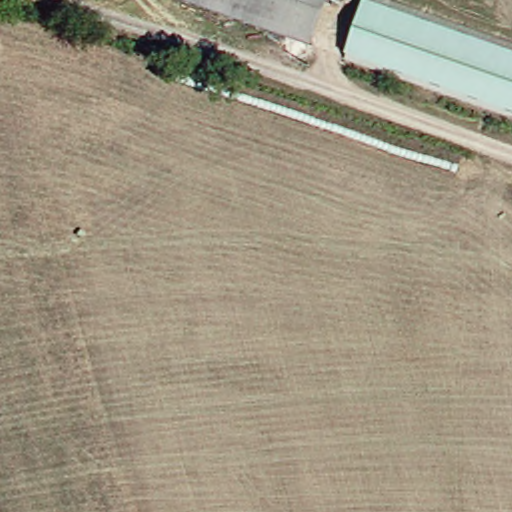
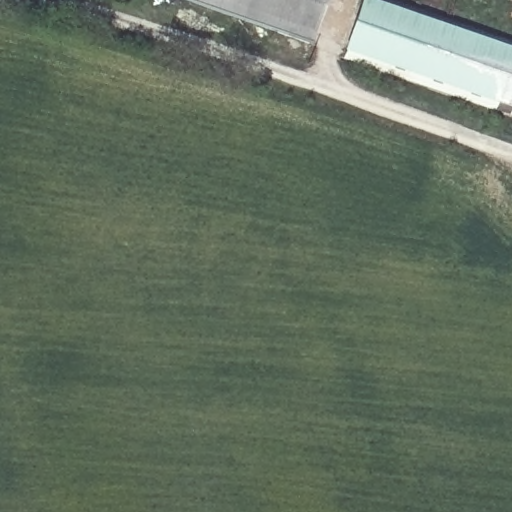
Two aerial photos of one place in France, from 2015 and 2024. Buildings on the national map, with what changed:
unchanged [(301,48),(163,0),(319,0),(301,48)]
unchanged [(512,120),(363,72),(368,48),(377,12),(389,17),(512,56),(512,120)]

